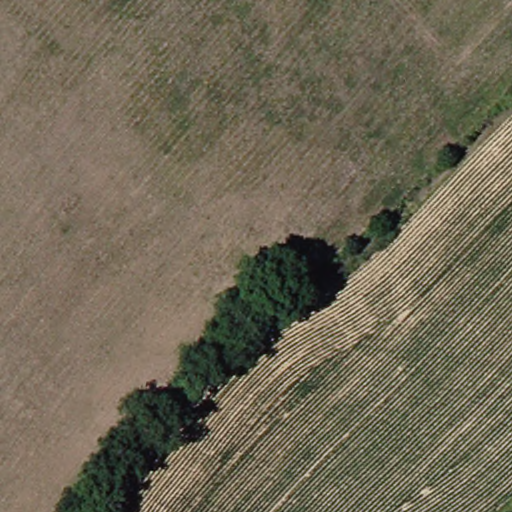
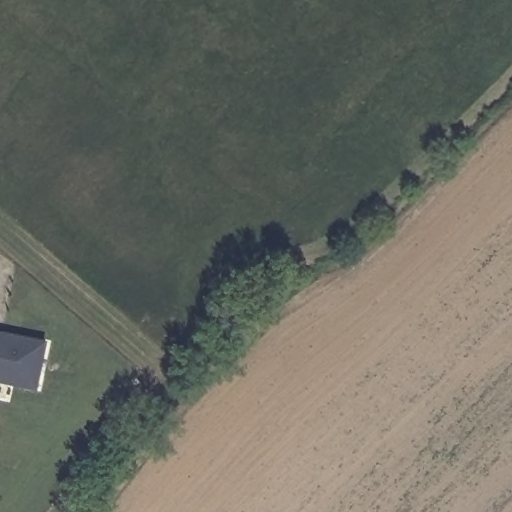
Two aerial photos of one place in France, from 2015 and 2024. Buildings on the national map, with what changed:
new [(41,390),(0,382),(0,331),(51,340),(41,390)]

